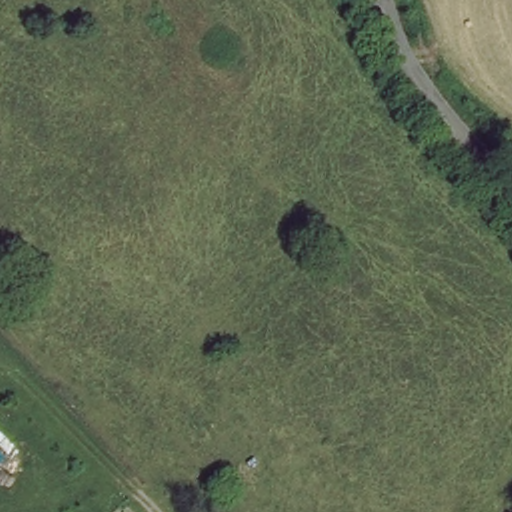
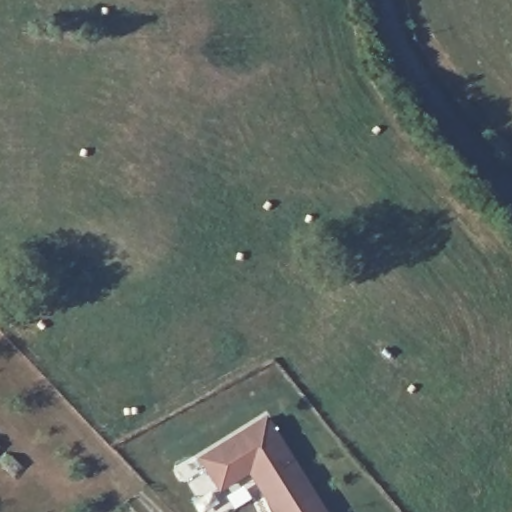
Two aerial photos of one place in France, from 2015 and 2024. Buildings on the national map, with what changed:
new [(266,413),(327,512),(273,512),(249,473),(219,491),(196,456),(266,413)]

